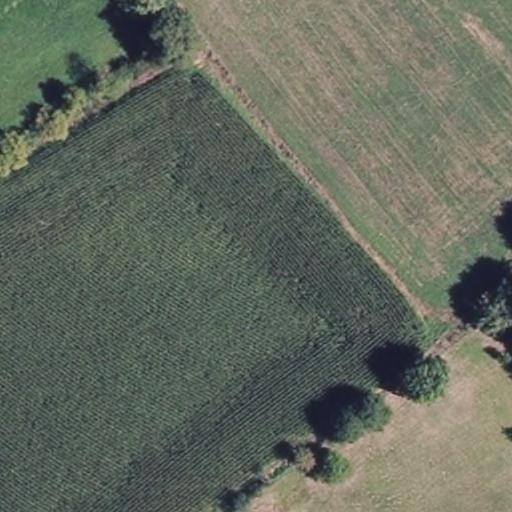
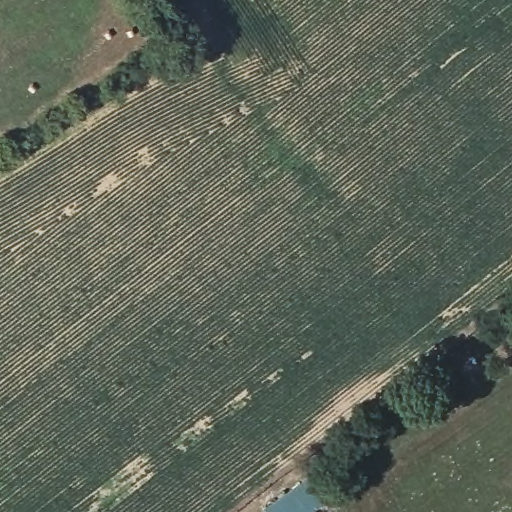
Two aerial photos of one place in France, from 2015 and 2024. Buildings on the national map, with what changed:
new [(310,476),(327,500),(309,512),(268,512),(265,507),(310,476)]

